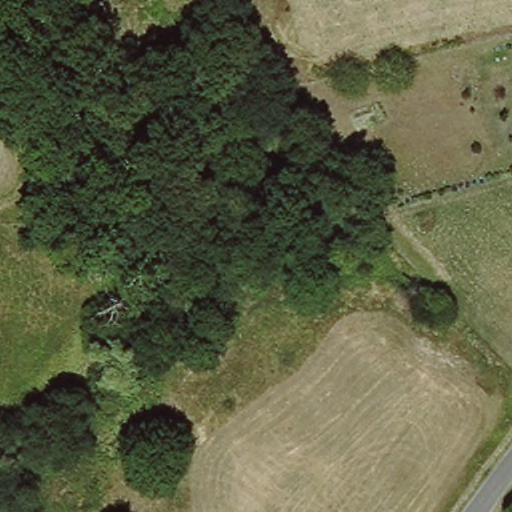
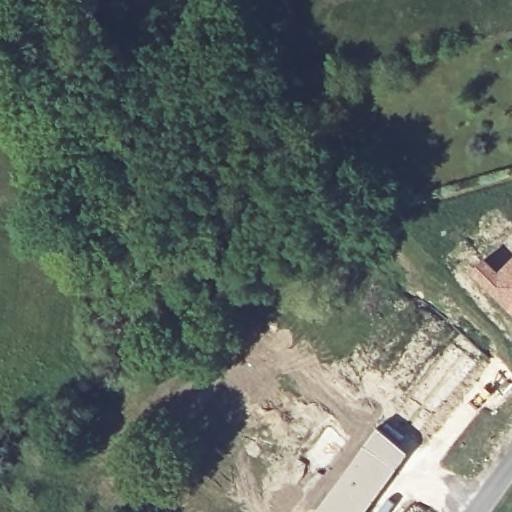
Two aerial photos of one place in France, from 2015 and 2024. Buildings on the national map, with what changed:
new [(484,256),(498,270),(512,256),(512,316),(466,273),(484,256)]
new [(408,453),(366,512),(313,512),(377,426),(408,453)]

